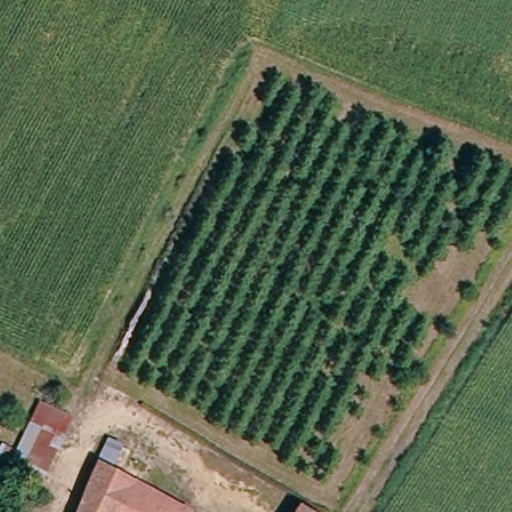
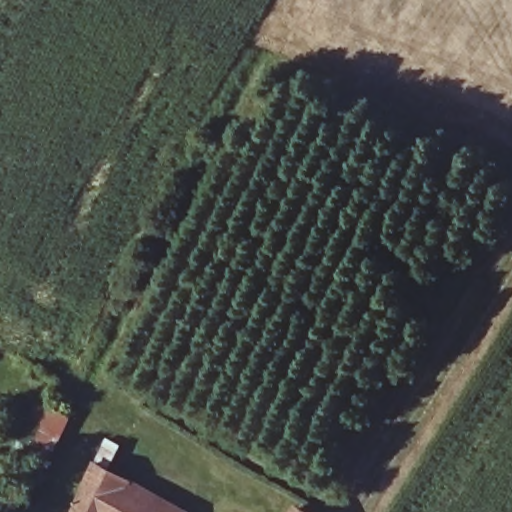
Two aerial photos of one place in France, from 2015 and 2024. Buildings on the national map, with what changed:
unchanged [(0,441),(14,446),(36,400),(69,416),(43,479),(0,460),(0,441)]
unchanged [(187,512),(73,512),(97,458),(187,512)]
unchanged [(332,512),(294,512),(306,495),(332,512)]

